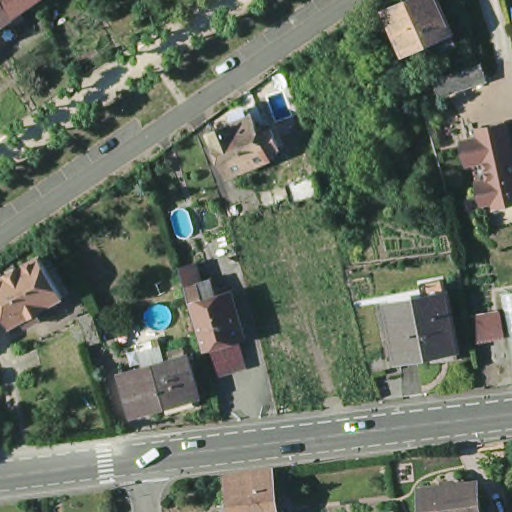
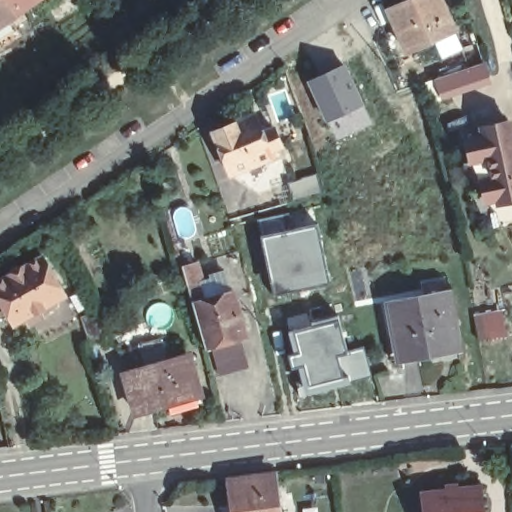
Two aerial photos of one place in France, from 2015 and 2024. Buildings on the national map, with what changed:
unchanged [(33,9),(22,16),(25,22),(14,30),(20,40),(0,53),(0,0),(47,0),(33,9)]
unchanged [(453,36),(439,42),(407,56),(389,16),(423,0),(437,0),(453,36)]
unchanged [(482,61),(487,77),(469,82),(439,93),(434,77),(464,67),(482,61)]
new [(345,62),(364,104),(325,122),(306,80),(345,62)]
unchanged [(211,135),(232,127),(232,129),(252,121),(259,136),(270,131),(279,149),(265,155),(268,160),(227,177),(211,135)]
unchanged [(496,181),(491,160),(479,162),(474,164),(469,142),(487,139),(485,130),(512,124),(512,203),(501,206),(500,201),(489,203),(485,184),(485,183),(496,181)]
demolished [(318,207),(315,204),(315,200),(290,207),(285,187),(299,182),(287,146),(302,141),(314,177),(319,196),(322,195),(325,205),(318,207)]
new [(317,172),(322,192),(292,200),(287,182),(317,172)]
new [(292,212),(295,228),(318,225),(327,284),(273,295),(257,218),(292,212)]
unchanged [(5,277),(4,276),(24,264),(25,266),(43,256),(65,295),(37,312),(40,317),(27,326),(24,318),(13,325),(4,309),(0,311),(0,279),(5,277)]
unchanged [(250,342),(209,353),(205,337),(195,303),(192,291),(186,272),(201,268),(207,287),(217,284),(222,301),(237,296),(250,342)]
unchanged [(444,357),(414,361),(404,362),(404,360),(395,361),(393,341),(401,340),(397,306),(403,305),(433,302),(431,286),(454,283),(455,299),(459,298),(464,345),(465,355),(444,357)]
demolished [(512,367),(492,370),(487,340),(510,336),(504,292),(512,291),(512,367)]
unchanged [(102,340),(87,345),(77,316),(92,311),(102,340)]
new [(338,317),(347,352),(365,349),(371,377),(303,395),(287,328),(338,317)]
unchanged [(199,397),(137,416),(124,375),(144,369),(140,356),(137,346),(159,340),(162,348),(166,362),(187,356),(199,397)]
unchanged [(274,482),(278,512),(232,512),(229,487),(274,482)]
unchanged [(445,495),(445,490),(474,487),(474,492),(480,492),(483,512),(426,512),(424,498),(445,495)]

